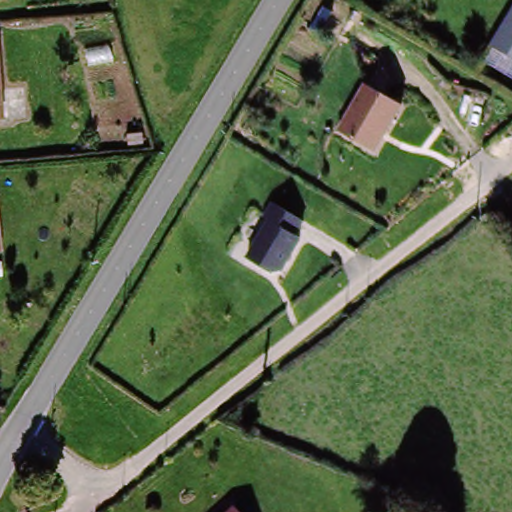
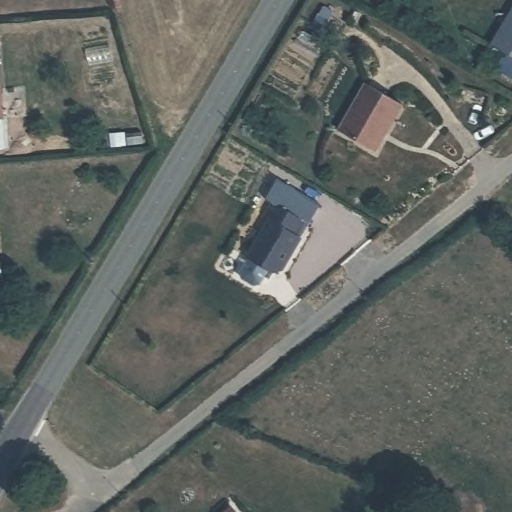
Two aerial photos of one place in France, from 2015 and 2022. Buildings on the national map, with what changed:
unchanged [(512,25),(512,58),(498,51),(512,25)]
unchanged [(13,124),(0,125),(0,42),(4,42),(13,124)]
unchanged [(407,106),(381,151),(346,132),(371,86),(407,106)]
unchanged [(252,258),(272,222),(267,219),(276,202),(306,219),(299,233),(304,235),(286,269),(279,271),(252,258)]

